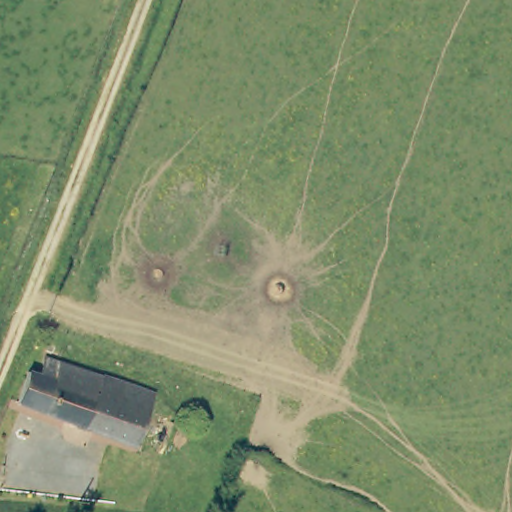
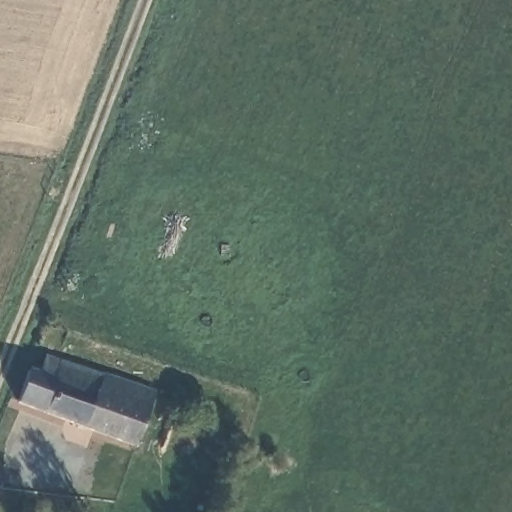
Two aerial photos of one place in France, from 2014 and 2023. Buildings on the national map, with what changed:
unchanged [(40,375),(45,358),(159,395),(141,450),(91,433),(17,403),(27,371),(40,375)]

